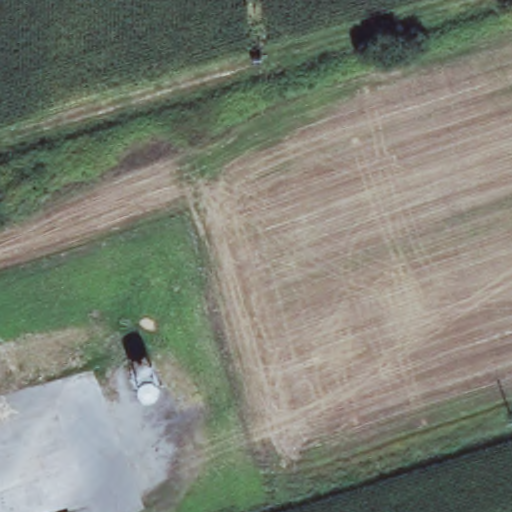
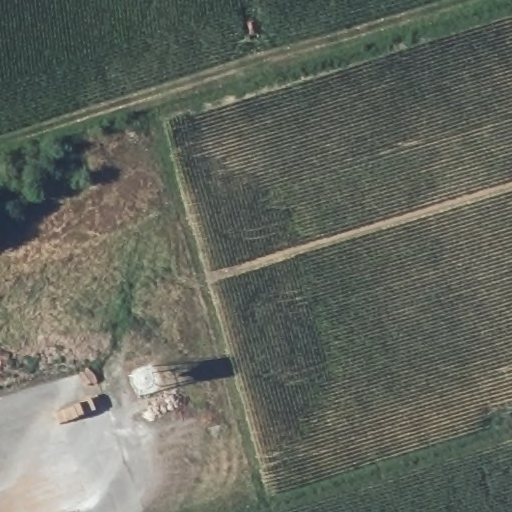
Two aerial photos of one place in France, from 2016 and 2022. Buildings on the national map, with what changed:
unchanged [(155,373),(157,382),(155,388),(150,392),(142,392),(137,388),(137,380),(141,373),(148,371),(155,373)]

